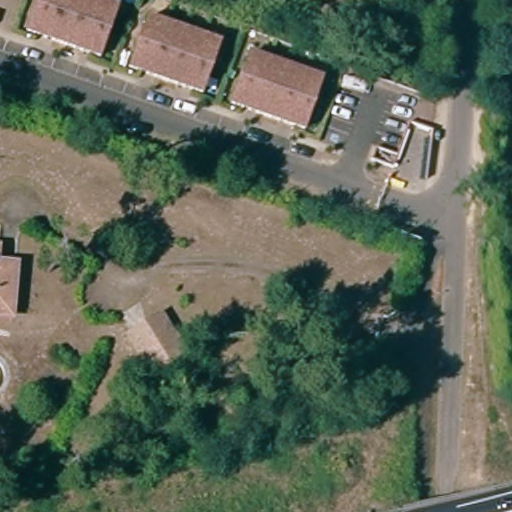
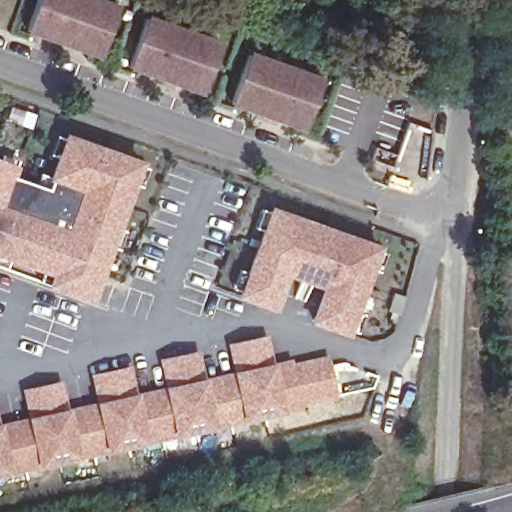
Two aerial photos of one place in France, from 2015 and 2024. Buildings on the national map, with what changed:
unchanged [(101,59),(26,33),(38,0),(88,0),(118,11),(101,59)]
unchanged [(183,29),(220,43),(203,91),(158,75),(129,64),(146,16),(183,29)]
unchanged [(322,79),(305,128),(231,101),(248,52),(322,79)]
new [(50,276),(0,258),(0,160),(18,166),(15,178),(49,190),(51,181),(48,179),(66,133),(143,161),(93,305),(46,287),(50,276)]
demolished [(403,148),(398,161),(376,153),(380,140),(403,148)]
new [(309,323),(322,289),(289,277),(277,312),(237,298),(270,206),(381,245),(349,339),(309,323)]
demolished [(14,309),(0,308),(0,259),(17,260),(14,309)]
demolished [(156,374),(132,335),(156,319),(181,357),(156,374)]
new [(21,390),(62,381),(68,409),(97,402),(91,375),(130,366),(136,393),(165,387),(160,361),(200,350),(206,378),(233,372),(227,344),(268,335),(275,363),(292,358),(293,362),(328,354),(338,399),(303,408),(286,414),(0,478),(0,425),(28,420),(21,390)]

